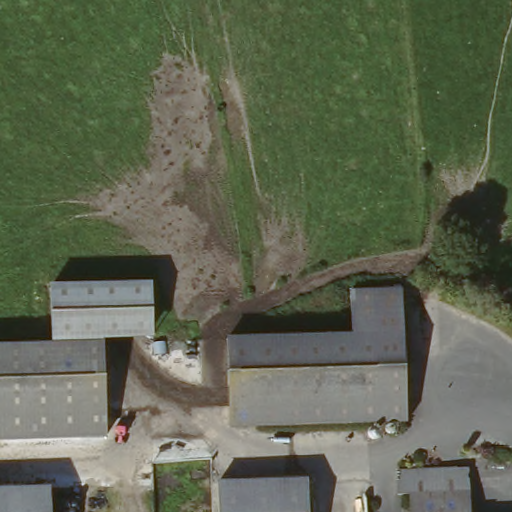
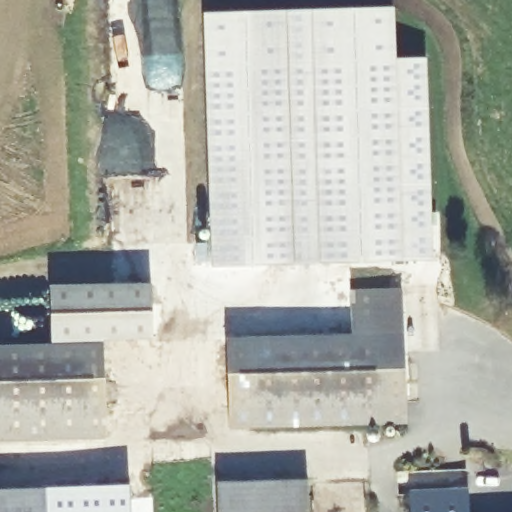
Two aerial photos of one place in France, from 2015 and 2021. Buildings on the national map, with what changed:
new [(394,7),(396,60),(426,58),(433,260),(401,260),(211,268),(203,13),(394,7)]
unchanged [(100,341),(100,351),(51,352),(49,288),(149,284),(153,340),(100,341)]
unchanged [(225,346),(346,338),(351,297),(396,294),(401,432),(226,432),(225,346)]
unchanged [(0,448),(0,353),(51,352),(100,351),(104,446),(0,448)]
unchanged [(468,504),(468,512),(407,512),(405,502),(396,503),(391,474),(465,477),(468,504)]
unchanged [(298,494),(300,494),(301,494),(301,495),(301,497),(302,512),(215,512),(214,494),(298,494)]
unchanged [(0,512),(0,502),(38,502),(38,512),(0,512)]

